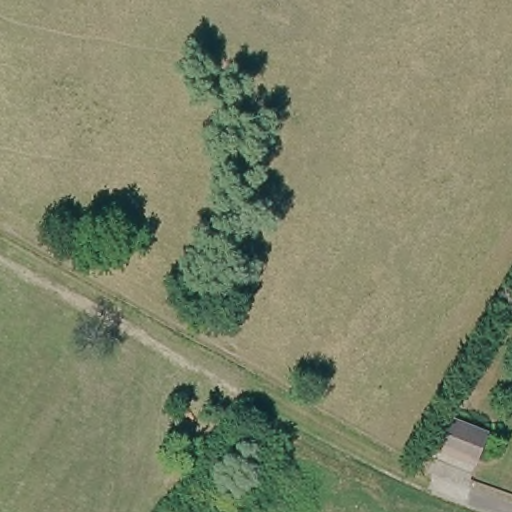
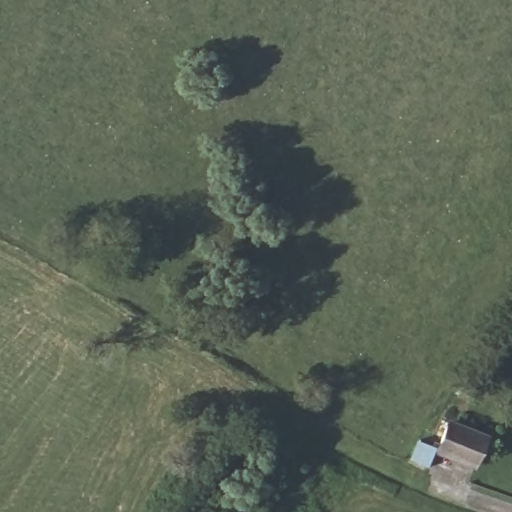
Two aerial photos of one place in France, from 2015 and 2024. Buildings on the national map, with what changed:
unchanged [(436,461),(451,418),(490,435),(477,474),(436,461)]

